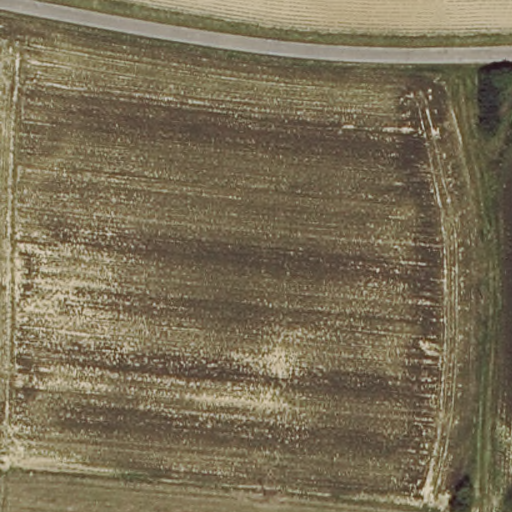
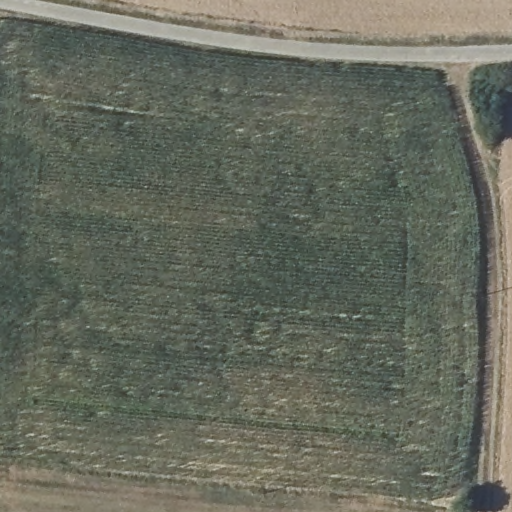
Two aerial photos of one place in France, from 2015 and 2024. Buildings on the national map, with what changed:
[]

